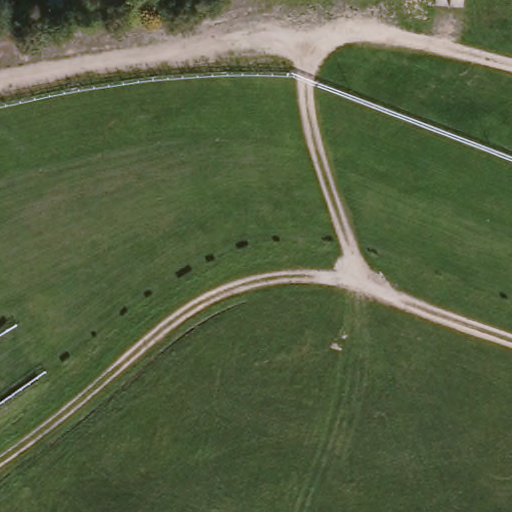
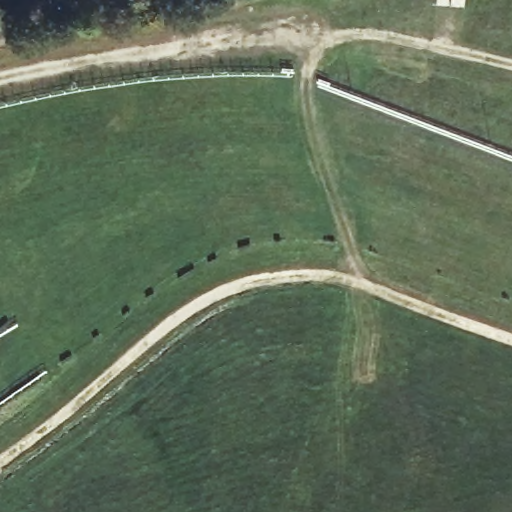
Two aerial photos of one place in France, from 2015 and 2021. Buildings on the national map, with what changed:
unchanged [(60,1),(49,3),(48,0),(60,0),(60,1)]

